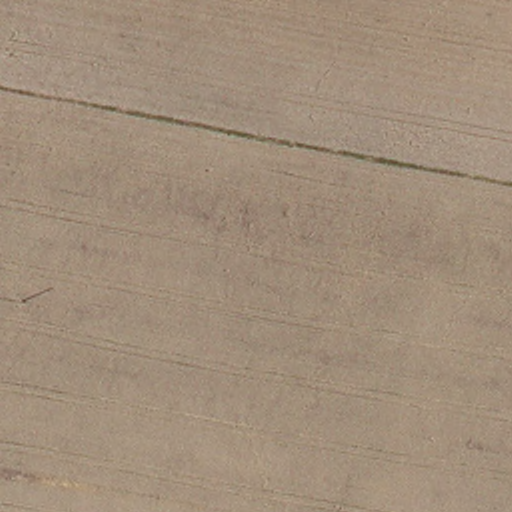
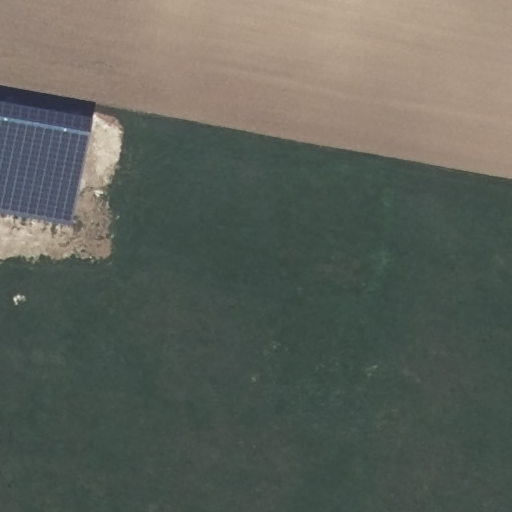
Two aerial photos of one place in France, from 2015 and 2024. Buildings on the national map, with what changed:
new [(70,230),(0,217),(0,112),(87,128),(70,230)]

